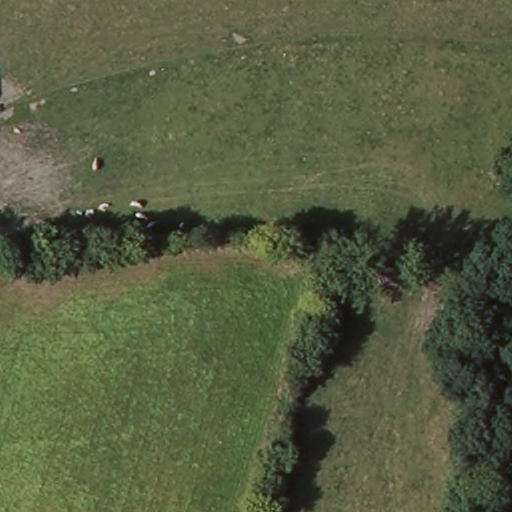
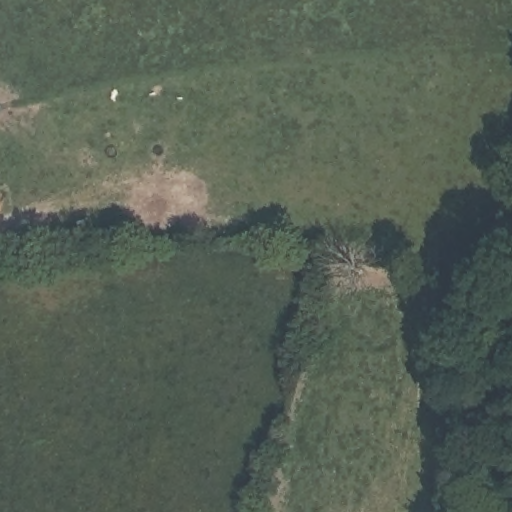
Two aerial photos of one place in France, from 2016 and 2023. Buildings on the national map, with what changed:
[]

